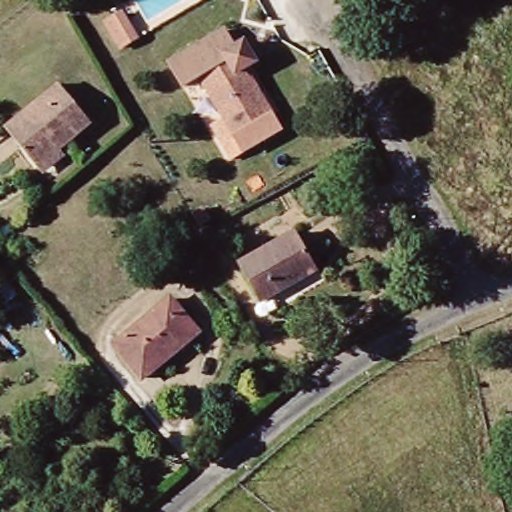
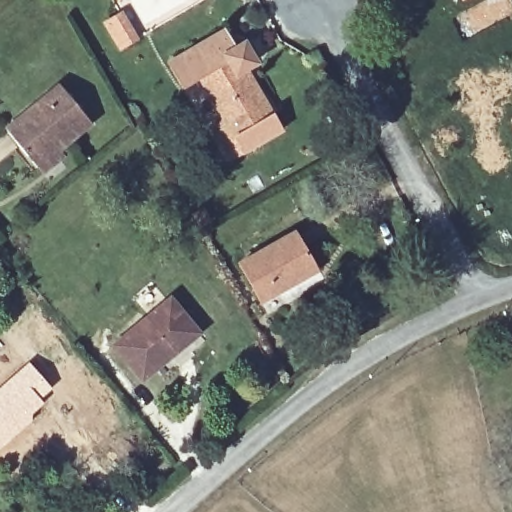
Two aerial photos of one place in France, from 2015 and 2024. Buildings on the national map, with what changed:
unchanged [(135,39),(119,49),(104,22),(120,13),(135,39)]
unchanged [(245,69),(281,130),(242,152),(199,78),(183,87),(169,63),(224,30),(234,49),(244,43),(255,62),(245,69)]
unchanged [(36,168),(5,129),(59,85),(91,124),(36,168)]
new [(512,129),(506,117),(512,114),(512,129)]
unchanged [(260,301),(239,264),(294,232),(316,270),(260,301)]
unchanged [(23,326),(7,303),(18,296),(34,318),(23,326)]
unchanged [(142,380),(114,345),(170,299),(198,333),(142,380)]
new [(28,360),(53,388),(41,400),(44,402),(24,425),(0,447),(0,386),(28,360)]

